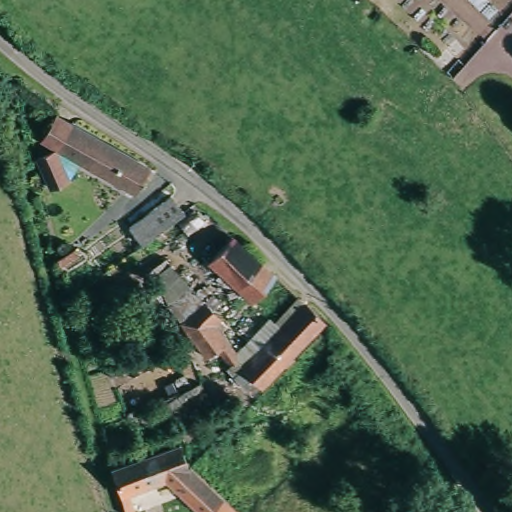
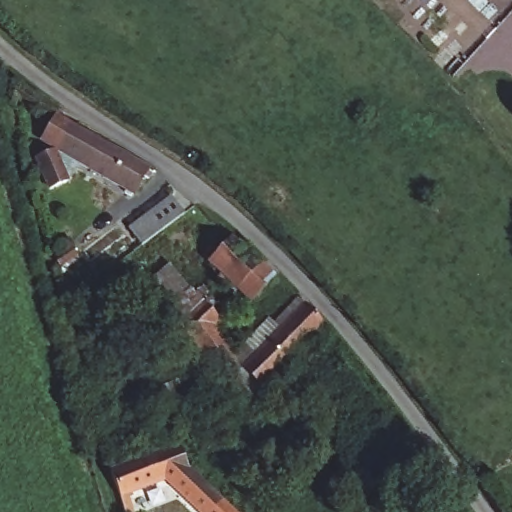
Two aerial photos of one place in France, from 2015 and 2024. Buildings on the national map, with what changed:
unchanged [(147,166),(129,191),(45,134),(62,112),(69,117),(71,115),(147,166)]
unchanged [(55,164),(37,170),(29,142),(41,138),(44,147),(50,145),(55,164)]
unchanged [(143,246),(130,229),(170,201),(183,216),(183,217),(143,246)]
unchanged [(285,287),(255,309),(215,273),(198,258),(227,237),(285,287)]
unchanged [(225,320),(215,329),(195,307),(173,321),(145,272),(165,256),(225,320)]
unchanged [(229,368),(236,361),(252,345),(241,335),(264,312),(269,317),(294,293),(329,323),(263,387),(255,395),(229,368)]
unchanged [(215,329),(235,352),(225,361),(215,348),(202,358),(173,321),(195,307),(215,329)]
unchanged [(139,501),(125,477),(182,444),(246,512),(211,512),(179,478),(139,501)]

